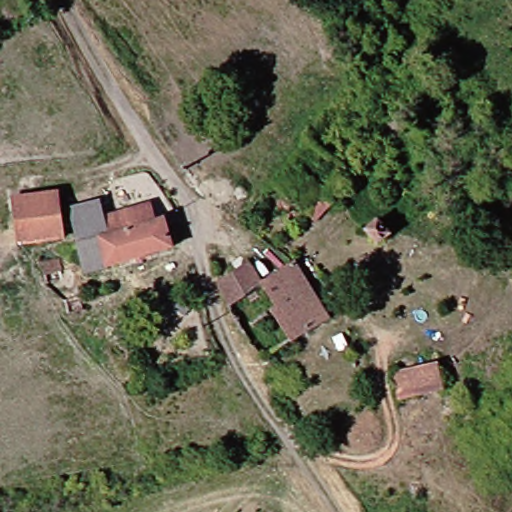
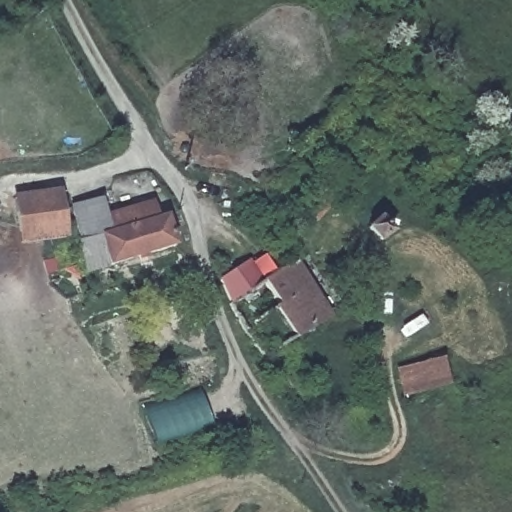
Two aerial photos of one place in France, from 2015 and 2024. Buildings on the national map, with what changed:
unchanged [(55,193),(68,231),(28,245),(15,206),(55,193)]
unchanged [(81,226),(96,221),(147,206),(152,222),(172,216),(181,246),(112,267),(96,272),(81,226)]
unchanged [(402,233),(387,244),(373,226),(388,215),(402,233)]
unchanged [(297,341),(276,307),(285,301),(275,279),(300,265),(332,320),(297,341)]
unchanged [(234,301),(225,282),(243,272),(253,290),(234,301)]
unchanged [(448,395),(401,405),(395,371),(443,362),(448,395)]
new [(155,446),(145,413),(205,392),(215,427),(155,446)]

